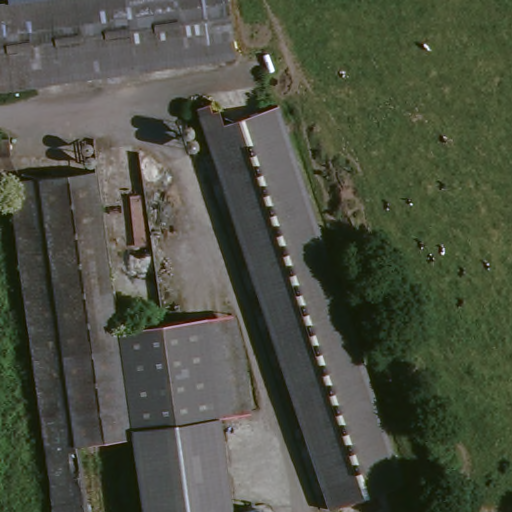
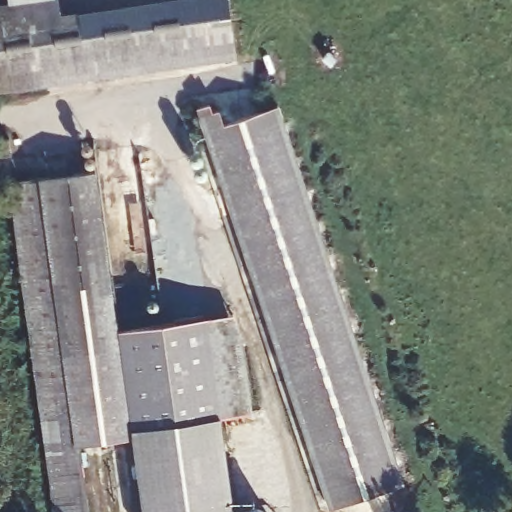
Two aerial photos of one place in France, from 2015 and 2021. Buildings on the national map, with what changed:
unchanged [(232,0),(239,57),(0,89),(0,3),(21,0),(232,0)]
unchanged [(193,126),(266,97),(423,485),(352,512),(348,512),(193,126)]
unchanged [(113,327),(131,454),(79,462),(86,512),(51,512),(8,197),(93,185),(113,327)]
unchanged [(234,328),(249,425),(222,432),(132,446),(119,347),(234,328)]
unchanged [(222,432),(232,512),(140,512),(132,446),(222,432)]

